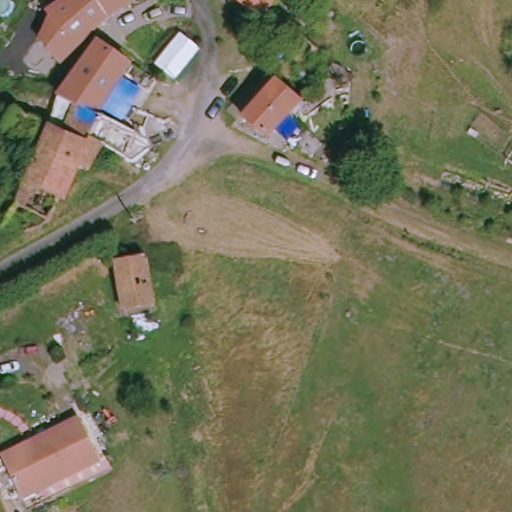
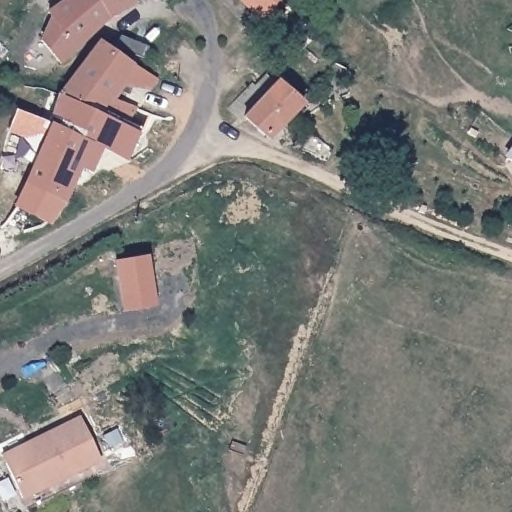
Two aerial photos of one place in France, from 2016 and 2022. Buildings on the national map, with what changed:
unchanged [(58,61),(39,36),(48,14),(44,8),(55,0),(97,0),(108,16),(58,61)]
unchanged [(238,0),(268,0),(255,16),(238,0)]
unchanged [(131,131),(120,156),(95,144),(87,140),(44,121),(50,94),(94,40),(126,61),(94,113),(118,124),(131,131)]
unchanged [(118,124),(94,113),(126,61),(147,76),(118,124)]
unchanged [(299,104),(264,139),(239,118),(274,81),(299,104)]
unchanged [(12,203),(28,168),(41,121),(44,121),(87,140),(75,167),(61,198),(57,196),(46,220),(12,203)]
unchanged [(143,258),(151,308),(120,312),(111,261),(143,258)]
unchanged [(99,456),(22,495),(5,462),(1,454),(33,438),(78,416),(99,456)]

